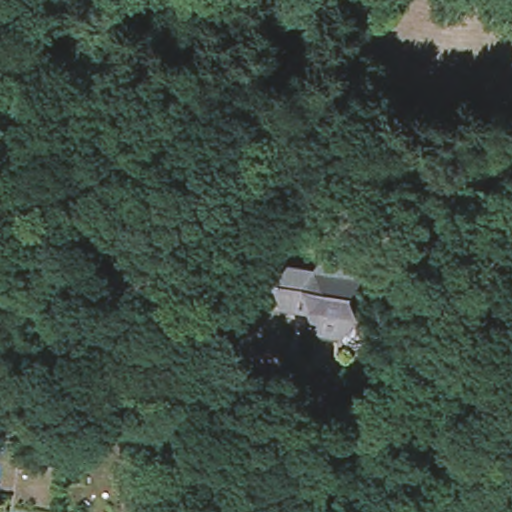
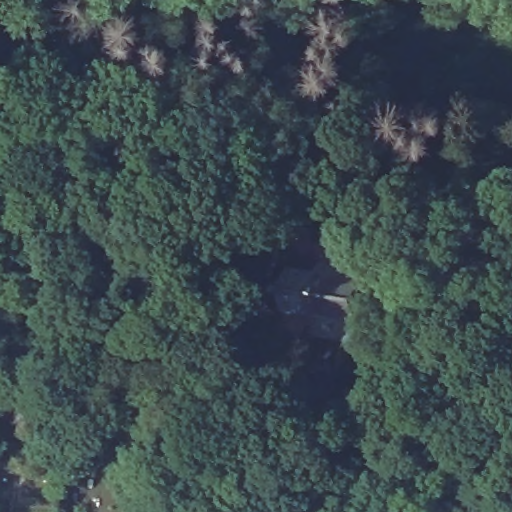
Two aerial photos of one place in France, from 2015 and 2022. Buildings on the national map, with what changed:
unchanged [(345,253),(354,277),(341,295),(348,318),(336,337),(313,333),(304,312),(278,308),(270,290),(265,289),(266,284),(271,284),(283,268),(308,272),(319,250),(345,253)]

